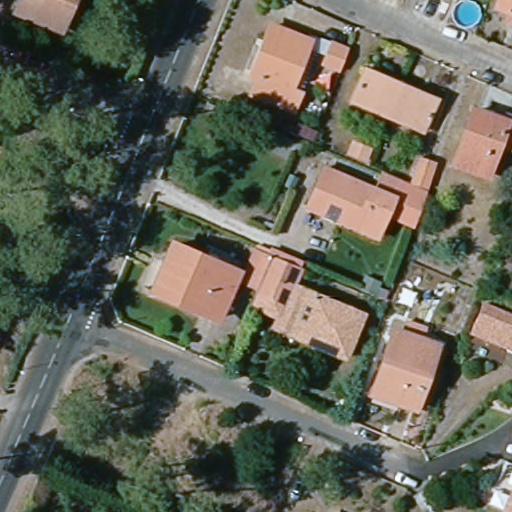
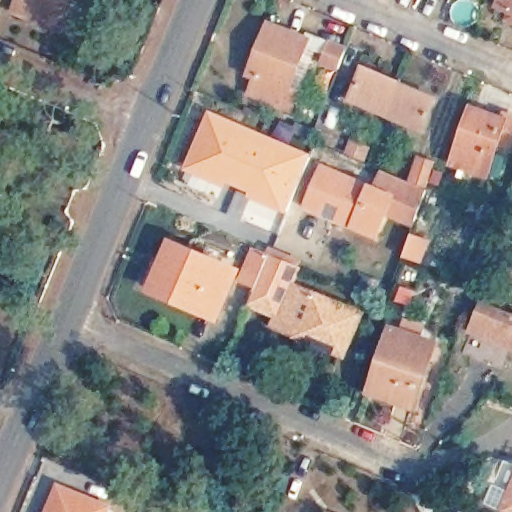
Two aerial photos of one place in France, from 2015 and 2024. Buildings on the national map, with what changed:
unchanged [(22,14),(27,0),(80,0),(74,15),(66,34),(22,14)]
unchanged [(308,40),(289,90),(298,94),(292,109),(255,93),(260,78),(252,75),(270,25),(308,40)]
unchanged [(348,55),(342,71),(326,64),(333,46),(349,52),(348,55)]
unchanged [(351,101),(365,68),(402,84),(389,116),(351,101)]
unchanged [(402,84),(437,99),(423,131),(389,116),(402,84)]
unchanged [(508,111),(512,112),(512,138),(510,143),(499,139),(487,171),(455,159),(475,106),(506,117),(508,111)]
new [(207,109),(310,154),(284,216),(246,201),(248,193),(226,183),(223,190),(182,170),(207,109)]
unchanged [(390,210),(379,234),(343,219),(326,212),(311,206),(327,168),(379,190),(385,177),(409,187),(420,162),(436,169),(427,195),(422,207),(417,222),(390,210)]
unchanged [(243,271),(224,318),(158,291),(178,242),(243,271)]
unchanged [(293,300),(264,287),(247,281),(259,251),(275,257),(306,270),(293,300)]
unchanged [(512,336),(478,321),(490,295),(512,304),(512,336)]
unchanged [(362,315),(344,356),(299,337),(315,296),(362,315)]
unchanged [(405,326),(425,332),(421,345),(435,350),(416,412),(374,397),(395,337),(401,338),(405,326)]
new [(114,507),(112,512),(47,512),(59,484),(114,507)]
unchanged [(441,512),(440,512),(425,512),(415,495),(427,488),(441,512)]
new [(512,488),(512,512),(508,512),(503,510),(512,488)]

